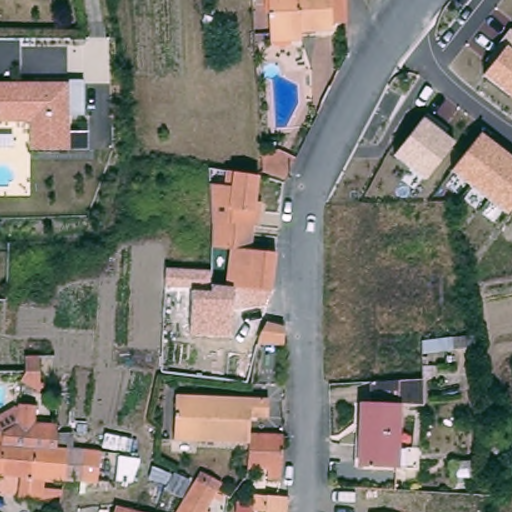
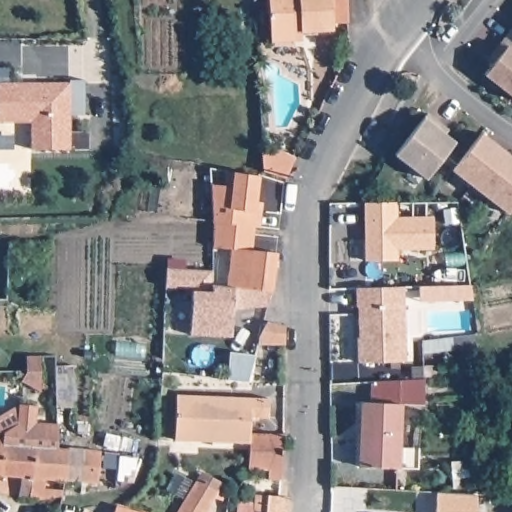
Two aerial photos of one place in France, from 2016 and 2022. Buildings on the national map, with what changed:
unchanged [(297,39),(276,40),(274,0),(351,0),(352,22),(337,22),(338,29),(307,30),(307,39),(297,39)]
unchanged [(482,74),(490,64),(484,60),(512,24),(512,97),(482,74)]
unchanged [(35,121),(16,122),(15,126),(0,125),(0,84),(27,84),(28,88),(41,88),(41,84),(75,84),(87,84),(87,109),(74,109),(74,152),(34,152),(35,121)]
unchanged [(423,119),(453,143),(425,180),(392,155),(423,119)]
unchanged [(481,134),(512,158),(512,207),(506,215),(451,171),(481,134)]
unchanged [(287,174),(263,170),(263,167),(262,148),(297,153),(287,174)]
unchanged [(258,225),(252,224),(211,219),(209,182),(225,184),(227,170),(236,171),(259,174),(255,200),(260,201),(258,225)]
new [(395,218),(431,217),(432,249),(396,250),(396,261),(366,263),(364,242),(363,222),(362,203),(395,203),(395,218)]
unchanged [(268,290),(255,289),(223,287),(225,249),(210,248),(211,229),(244,233),(251,234),(250,249),(276,252),(268,290)]
unchanged [(255,289),(268,290),(263,306),(232,311),(231,337),(190,336),(191,290),(165,288),(166,270),(211,271),(210,286),(223,287),(255,289)]
new [(433,286),(471,285),(473,300),(433,301),(413,302),(413,287),(433,286)]
new [(405,361),(358,363),(357,338),(358,338),(358,319),(358,307),(356,307),(356,288),(403,287),(405,361)]
unchanged [(283,325),(283,345),(257,339),(261,320),(283,325)]
unchanged [(476,347),(455,349),(454,337),(475,335),(476,347)]
unchanged [(435,339),(436,350),(423,351),(423,340),(435,339)]
unchanged [(28,355),(42,355),(41,390),(20,379),(28,369),(28,355)]
unchanged [(365,468),(368,402),(375,402),(376,382),(387,381),(406,380),(405,403),(403,469),(365,468)]
unchanged [(466,390),(466,453),(450,452),(450,390),(466,390)]
unchanged [(250,448),(175,444),(177,398),(271,403),(270,421),(251,420),(251,435),(251,437),(250,448)]
unchanged [(57,500),(24,497),(28,476),(0,474),(0,419),(20,407),(25,407),(25,404),(42,405),(40,424),(62,426),(62,447),(72,448),(89,449),(105,450),(102,483),(86,481),(68,480),(48,478),(48,490),(58,490),(67,491),(66,497),(57,500)]
unchanged [(500,434),(503,469),(494,471),(489,435),(500,434)]
unchanged [(250,448),(251,437),(283,439),(280,485),(268,484),(269,474),(249,473),(250,448)]
unchanged [(228,496),(226,501),(220,498),(211,512),(182,512),(203,478),(224,491),(222,493),(228,496)]
unchanged [(288,497),(287,512),(267,512),(268,495),(288,497)]
unchanged [(146,512),(120,512),(122,505),(146,512)]

